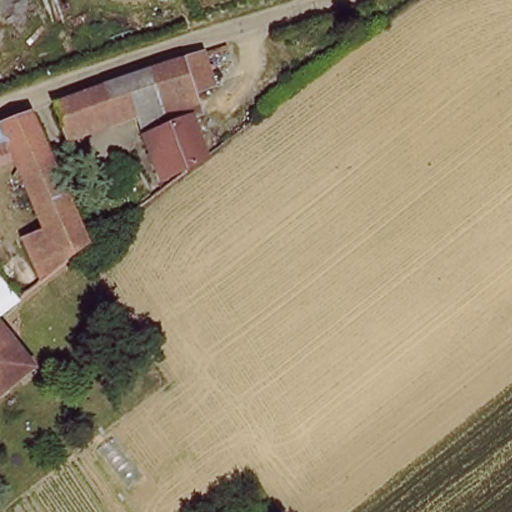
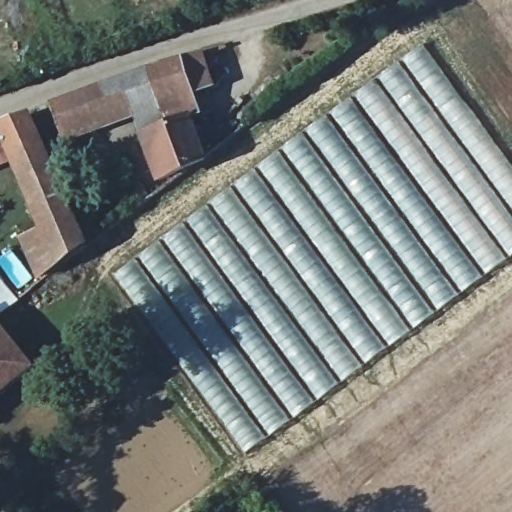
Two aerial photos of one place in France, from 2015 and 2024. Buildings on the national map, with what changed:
new [(243,456),(111,274),(417,43),(512,165),(512,258),(243,456)]
unchanged [(214,92),(195,99),(200,114),(191,122),(205,161),(207,166),(185,174),(160,185),(135,118),(65,140),(53,112),(77,102),(128,83),(202,61),(214,92)]
unchanged [(0,127),(30,116),(72,213),(41,227),(14,162),(0,129),(0,127)]
unchanged [(0,168),(0,129),(14,162),(0,168)]
unchanged [(72,213),(86,245),(76,253),(52,271),(37,282),(17,238),(41,227),(72,213)]
unchanged [(0,315),(0,283),(16,303),(0,315)]
unchanged [(31,373),(0,398),(0,334),(28,369),(31,373)]

